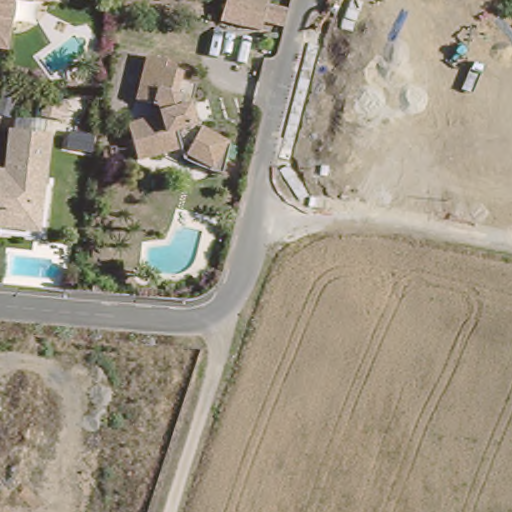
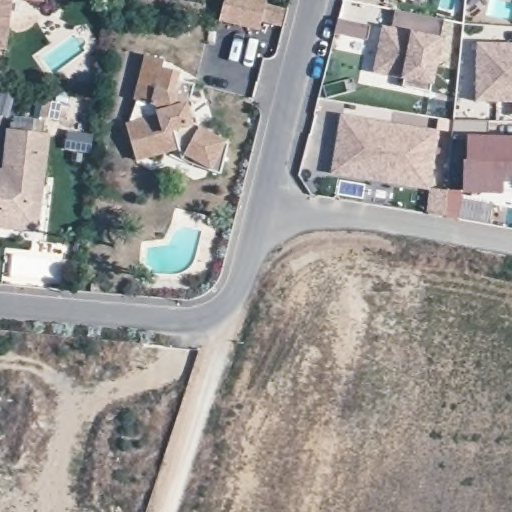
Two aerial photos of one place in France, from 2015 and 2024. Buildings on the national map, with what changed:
unchanged [(7,0),(2,51),(0,51),(0,0),(7,0)]
unchanged [(15,0),(64,0),(63,6),(15,0)]
unchanged [(256,19),(254,27),(214,17),(219,0),(262,0),(261,0),(280,5),(276,24),(256,19)]
new [(415,0),(414,3),(403,0),(415,0)]
new [(433,92),(405,86),(406,79),(374,72),(382,26),(393,28),(397,10),(446,19),(443,39),(434,86),(433,92)]
new [(366,40),(334,34),(338,20),(369,25),(366,40)]
new [(512,45),(512,104),(476,103),(477,44),(512,45)]
unchanged [(193,122),(194,121),(229,140),(228,144),(221,170),(209,167),(210,165),(177,146),(136,157),(127,121),(158,112),(155,102),(135,97),(147,52),(165,57),(163,64),(181,69),(179,77),(195,81),(190,100),(188,100),(193,122)]
unchanged [(74,92),(65,90),(66,81),(75,83),(74,92)]
unchanged [(64,122),(40,118),(43,103),(67,107),(64,122)]
new [(331,175),(342,116),(439,132),(430,187),(429,190),(331,175)]
new [(429,190),(430,187),(463,190),(465,137),(454,139),(455,120),(489,120),(490,137),(512,138),(512,178),(503,178),(502,195),(462,193),(459,219),(428,215),(429,190)]
unchanged [(5,169),(10,129),(47,133),(40,182),(38,204),(35,226),(0,222),(0,168),(5,169)]
unchanged [(210,165),(209,167),(206,174),(194,176),(169,162),(153,166),(136,157),(177,146),(210,165)]

